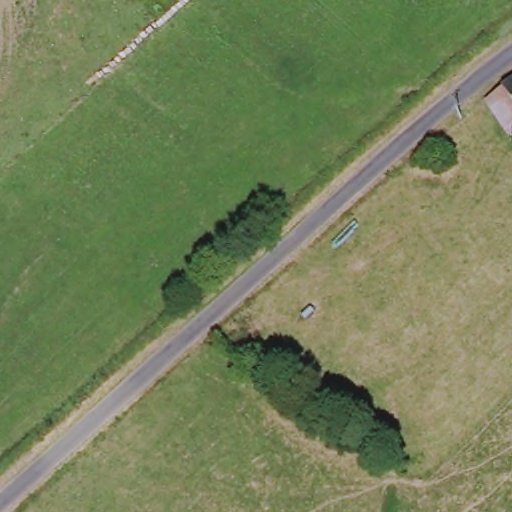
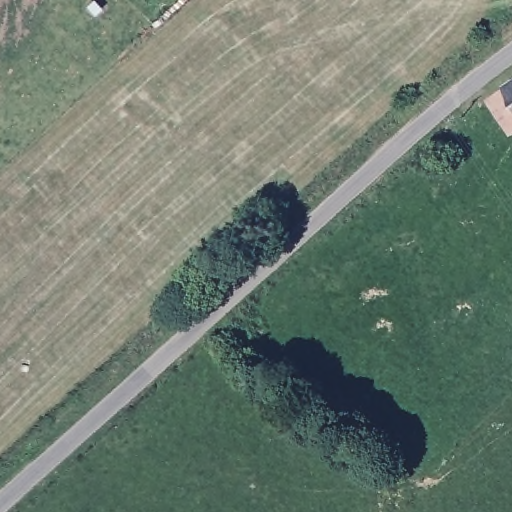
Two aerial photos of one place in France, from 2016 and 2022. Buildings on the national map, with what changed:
unchanged [(512,86),(512,133),(489,102),(512,86)]

